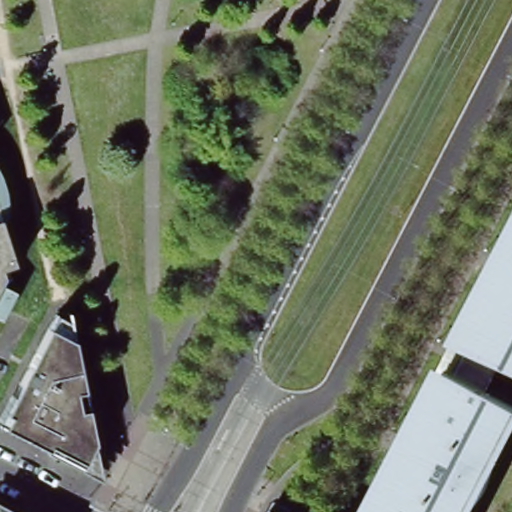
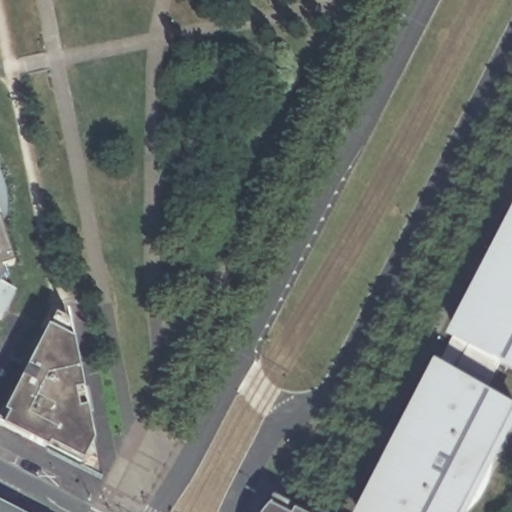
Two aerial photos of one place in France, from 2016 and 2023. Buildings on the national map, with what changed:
unchanged [(0,321),(0,177),(4,192),(4,199),(3,206),(2,215),(4,224),(4,230),(7,239),(9,245),(14,263),(5,267),(8,275),(3,286),(20,296),(6,323),(0,321)]
unchanged [(512,374),(512,425),(467,512),(410,512),(381,496),(512,242),(512,355),(505,370),(512,374)]
unchanged [(104,472),(1,418),(55,307),(72,315),(104,472)]
unchanged [(2,491),(42,512),(0,512),(0,497),(2,491)]
unchanged [(298,504),(300,500),(323,512),(262,512),(273,491),(298,504)]

